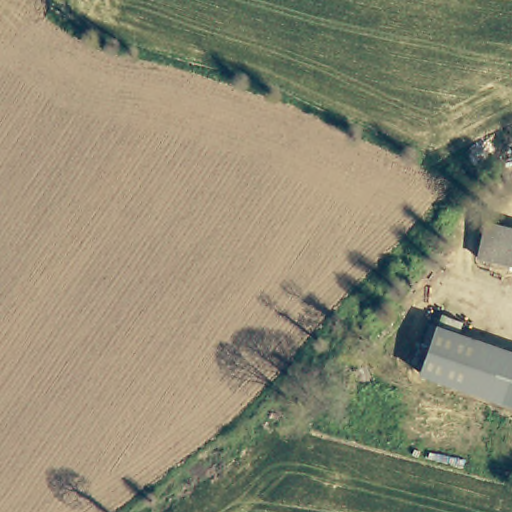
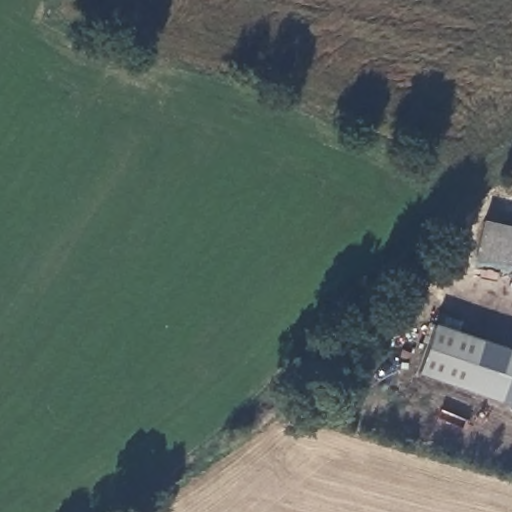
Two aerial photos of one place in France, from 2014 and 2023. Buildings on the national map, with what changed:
unchanged [(474,261),(482,229),(483,224),(512,231),(512,270),(474,261)]
unchanged [(512,356),(512,406),(420,374),(436,330),(512,356)]

